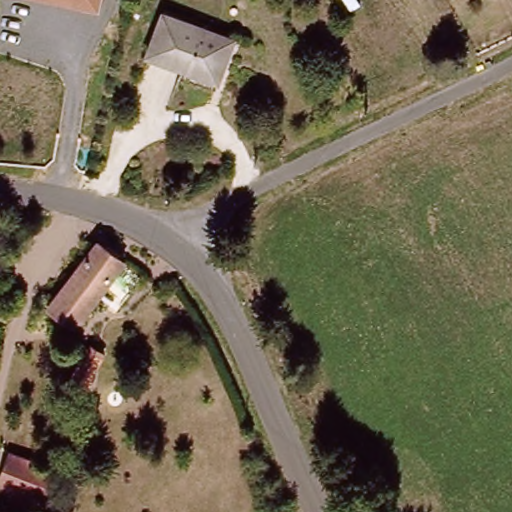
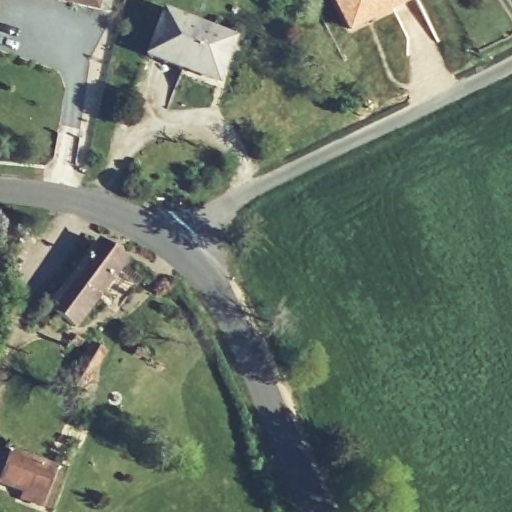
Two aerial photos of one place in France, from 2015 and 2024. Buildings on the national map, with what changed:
unchanged [(89,4),(74,0),(72,0),(101,0),(99,6),(89,4)]
new [(349,35),(331,0),(416,0),(382,19),(349,35)]
unchanged [(146,51),(163,6),(233,35),(216,79),(146,51)]
unchanged [(50,311),(99,244),(125,264),(76,329),(50,311)]
unchanged [(68,389),(91,348),(104,356),(80,397),(68,389)]
unchanged [(28,496),(31,489),(7,481),(18,450),(60,466),(50,496),(47,504),(28,496)]

